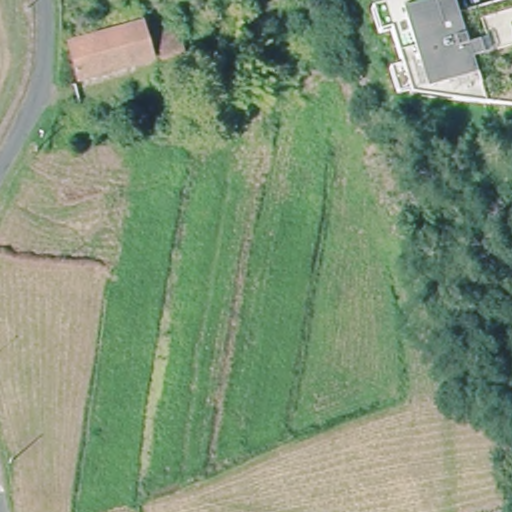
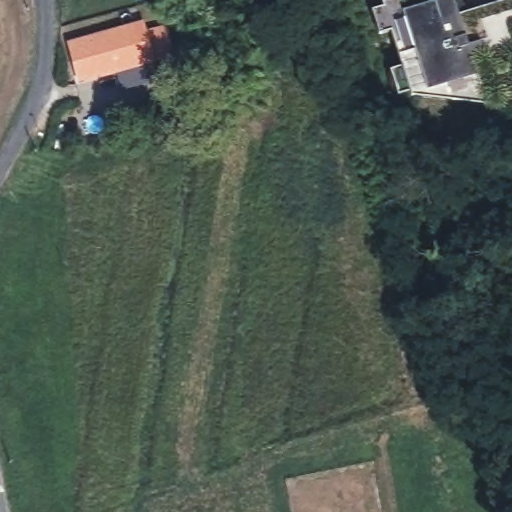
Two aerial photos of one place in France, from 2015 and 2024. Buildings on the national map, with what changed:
unchanged [(475,99),(422,95),(422,91),(412,94),(410,89),(398,93),(390,68),(402,64),(390,29),(378,33),(371,9),(382,5),(381,0),(382,0),(455,0),(458,11),(468,41),(481,37),(485,51),(473,55),(480,75),(482,83),(488,100),(475,99)]
unchanged [(172,19),(184,54),(165,61),(153,25),(172,19)]
unchanged [(152,60),(80,81),(70,48),(142,27),(152,60)]

